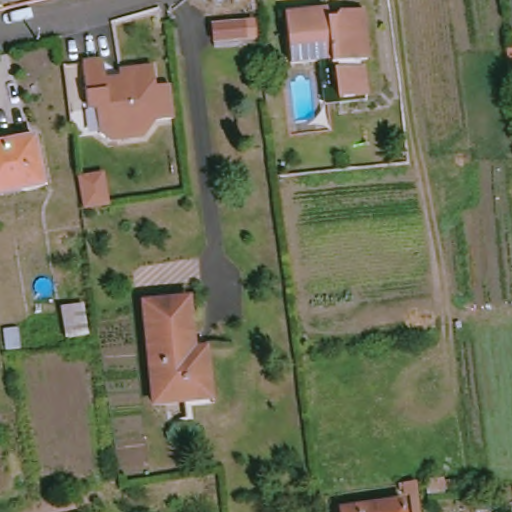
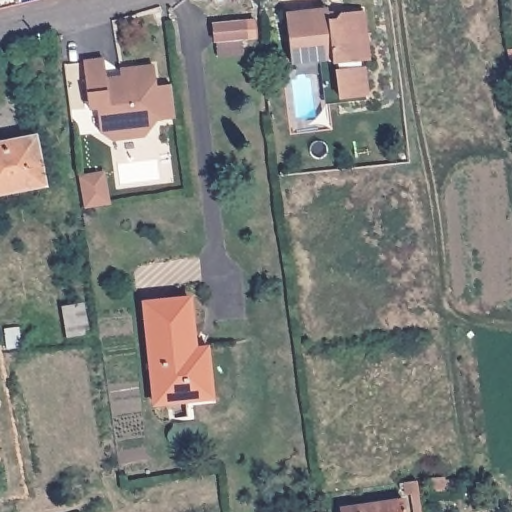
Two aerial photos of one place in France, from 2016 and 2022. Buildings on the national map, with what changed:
unchanged [(319,76),(335,74),(334,64),(330,65),(329,59),(288,64),(282,16),(323,11),(325,20),(334,19),(337,14),(350,13),(358,11),(362,33),(365,60),(358,61),(360,69),(363,69),(365,95),(338,99),(322,100),(319,76)]
unchanged [(248,21),(250,37),(217,40),(215,25),(248,21)]
unchanged [(512,49),(512,83),(510,83),(507,49),(512,49)]
unchanged [(175,105),(177,120),(160,123),(147,139),(128,141),(112,144),(102,136),(99,111),(90,113),(85,66),(105,64),(120,74),(122,74),(155,70),(158,90),(172,88),(175,105)]
unchanged [(0,195),(0,145),(32,139),(42,187),(0,195)]
unchanged [(112,207),(85,212),(80,178),(107,173),(112,207)]
unchanged [(185,403),(152,406),(142,305),(187,300),(192,353),(202,352),(203,359),(205,384),(207,400),(185,403)]
unchanged [(91,336),(67,339),(62,309),(87,303),(91,336)]
unchanged [(340,508),(402,499),(404,512),(340,512),(340,508)]

